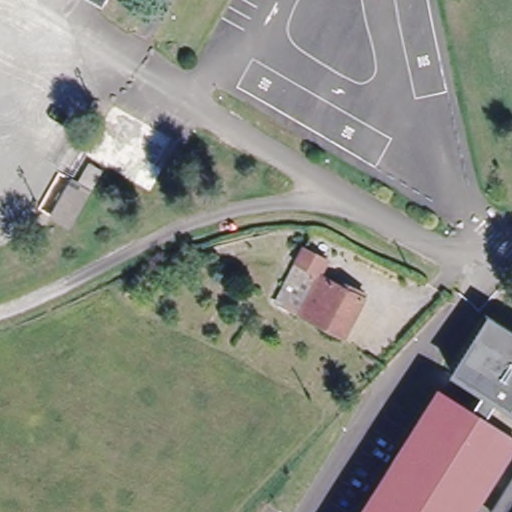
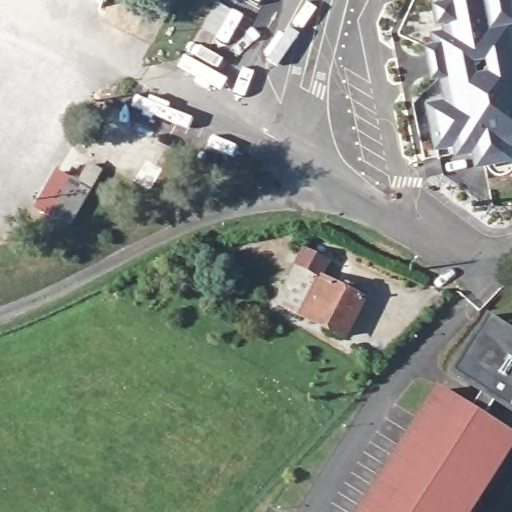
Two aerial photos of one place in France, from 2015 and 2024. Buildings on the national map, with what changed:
unchanged [(97,0),(109,0),(106,5),(97,0)]
new [(512,149),(510,149),(512,158),(512,162),(473,171),(471,156),(453,158),(452,150),(433,153),(422,104),(440,100),(437,81),(428,81),(422,45),(431,44),(428,33),(440,30),(440,25),(435,26),(431,5),(435,4),(435,0),(512,0),(512,2),(512,149)]
demolished [(183,135),(154,181),(90,145),(117,99),(183,135)]
unchanged [(90,194),(71,228),(52,218),(72,184),(90,194)]
unchanged [(330,262),(322,276),(344,290),(347,283),(365,293),(343,336),(297,313),(279,303),(298,266),(306,250),(330,262)]
unchanged [(471,512),(365,512),(441,387),(474,406),(485,388),(455,371),(486,321),(484,320),(488,311),(512,326),(512,445),(472,510),(471,512)]
unchanged [(512,485),(512,512),(496,512),(512,485)]

